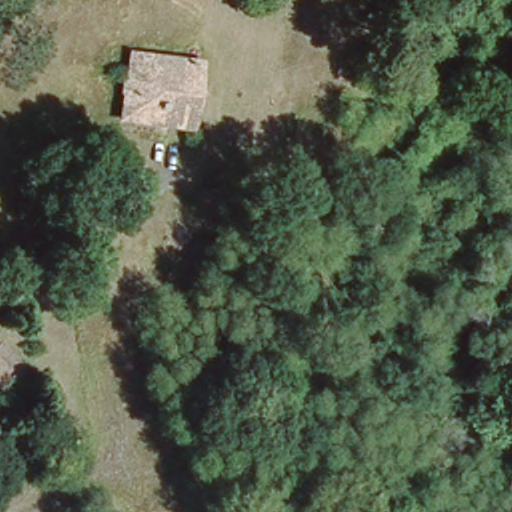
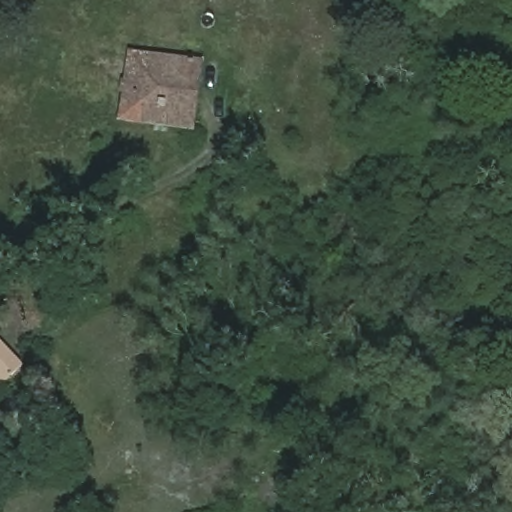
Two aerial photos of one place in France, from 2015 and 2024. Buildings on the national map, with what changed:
unchanged [(187,127),(177,126),(119,115),(135,57),(201,66),(187,127)]
unchanged [(252,256),(190,263),(188,240),(248,232),(252,256)]
demolished [(3,341),(0,343),(0,336),(3,341)]
new [(23,362),(0,386),(0,385),(0,340),(23,362)]

